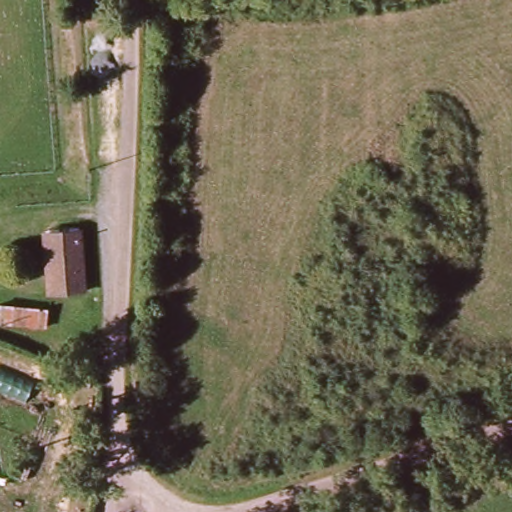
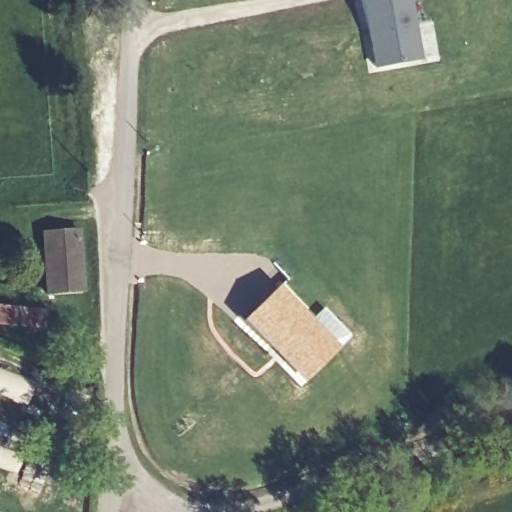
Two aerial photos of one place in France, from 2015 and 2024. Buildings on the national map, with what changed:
new [(421,61),(374,70),(362,0),(410,0),(421,61)]
unchanged [(48,231),(82,228),(88,293),(52,295),(48,231)]
new [(339,347),(303,382),(243,321),(279,285),(339,347)]
unchanged [(0,327),(0,322),(1,312),(50,316),(50,333),(0,327)]

